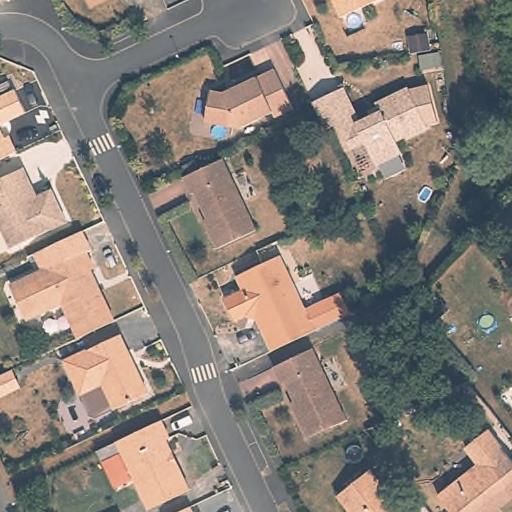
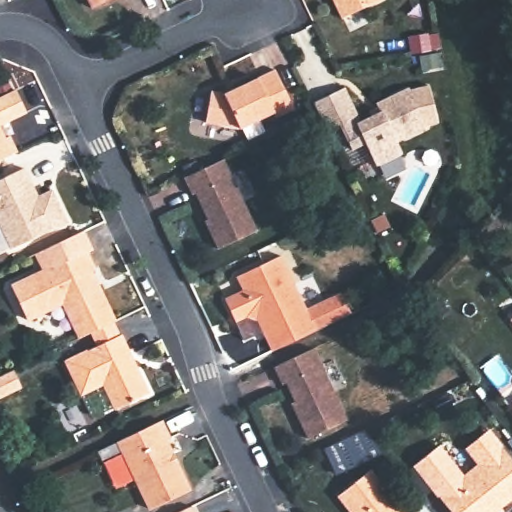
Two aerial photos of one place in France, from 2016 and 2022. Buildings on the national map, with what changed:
unchanged [(107,0),(91,8),(87,0),(107,0)]
unchanged [(333,0),(380,0),(342,19),(333,0)]
unchanged [(211,91),(225,94),(275,70),(293,109),(276,118),(273,113),(240,129),(206,123),(211,91)]
unchanged [(427,122),(397,137),(402,149),(377,161),(366,139),(352,145),(340,119),(326,126),(318,109),(313,98),(344,83),(360,117),(381,108),(376,99),(408,83),(427,122)]
unchanged [(10,136),(17,151),(0,160),(0,127),(6,139),(10,136)]
unchanged [(219,161),(224,159),(257,230),(218,249),(205,221),(207,219),(196,193),(192,195),(184,178),(219,161)]
unchanged [(33,188),(37,197),(52,190),(67,223),(12,249),(0,225),(0,179),(24,168),(33,188)]
unchanged [(63,304),(27,320),(12,286),(44,270),(36,254),(83,231),(92,250),(87,253),(95,268),(92,270),(115,321),(80,338),(63,304)]
unchanged [(317,331),(272,352),(256,318),(249,315),(236,322),(225,299),(243,290),(237,277),(281,256),(317,331)]
unchanged [(104,384),(82,394),(66,361),(121,335),(149,394),(116,409),(104,384)]
unchanged [(313,349),(347,420),(308,439),(295,410),(298,409),(286,383),(282,384),(274,367),(313,349)]
unchanged [(117,442),(162,421),(170,438),(166,440),(190,490),(150,509),(117,442)]
unchanged [(480,465),(466,448),(488,430),(497,442),(512,460),(512,498),(494,512),(451,512),(439,497),(480,465)]
unchanged [(337,496),(371,470),(405,512),(350,512),(337,496)]
unchanged [(430,512),(406,512),(421,500),(430,512)]
unchanged [(191,506),(194,512),(179,512),(191,506)]

